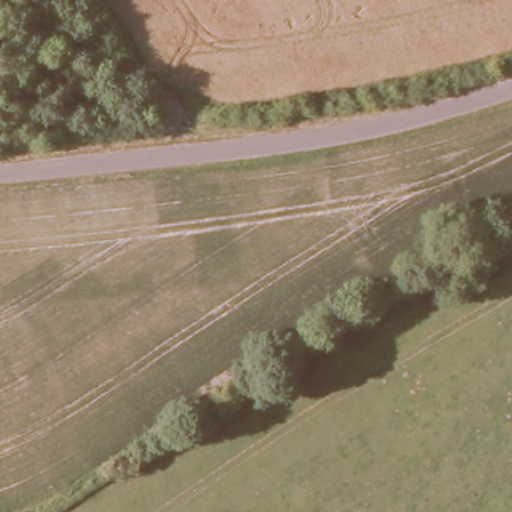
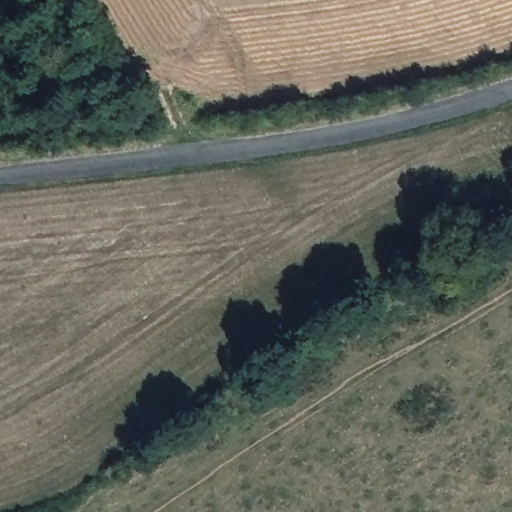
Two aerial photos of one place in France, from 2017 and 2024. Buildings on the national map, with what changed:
unchanged [(465,242),(479,263),(457,277),(443,258),(465,242)]

